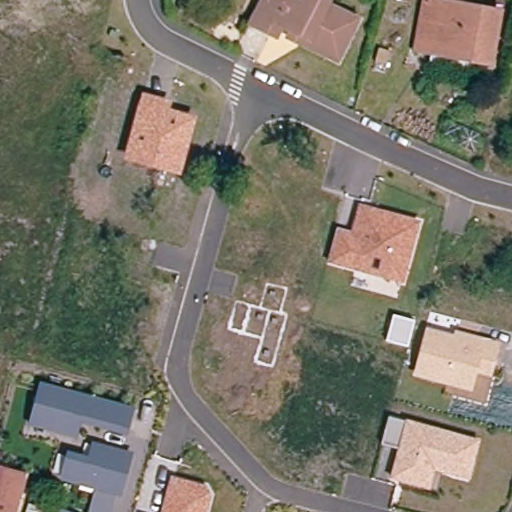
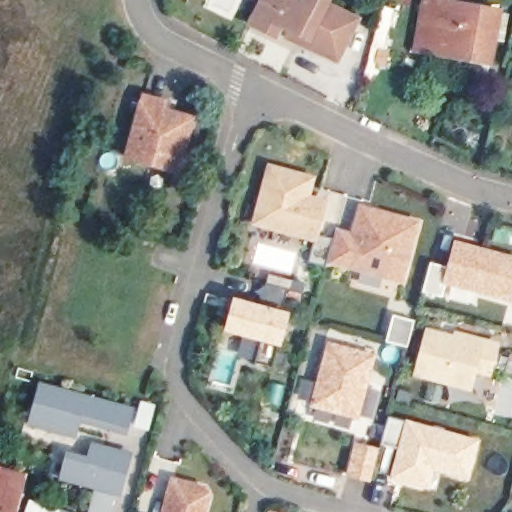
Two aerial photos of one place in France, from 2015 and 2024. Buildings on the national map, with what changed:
unchanged [(302,39),(287,32),(283,41),(257,27),(272,0),(320,0),(330,5),(327,13),(356,27),(335,66),(312,55),(298,47),(302,39)]
unchanged [(413,52),(421,28),(428,0),(430,0),(502,21),(486,74),(466,67),(429,56),(413,52)]
unchanged [(171,99),(168,108),(197,116),(182,174),(124,159),(142,92),(171,99)]
new [(253,224),(268,162),(317,175),(312,195),(328,200),(317,242),(253,224)]
unchanged [(352,232),(359,202),(422,220),(405,283),(327,262),(337,227),(352,232)]
new [(451,268),(458,243),(512,257),(512,298),(449,282),(445,297),(425,292),(432,263),(451,268)]
new [(276,345),(271,362),(258,359),(262,342),(225,332),(234,297),(261,304),(265,285),(287,291),(282,311),(290,312),(281,347),(276,345)]
new [(397,315),(418,321),(411,347),(391,342),(397,315)]
unchanged [(426,327),(453,335),(455,328),(502,341),(494,379),(478,374),(474,392),(414,377),(426,327)]
new [(377,355),(361,420),(310,407),(327,341),(377,355)]
unchanged [(32,407),(38,385),(129,410),(123,432),(76,420),(71,436),(46,428),(27,423),(32,407)]
unchanged [(398,447),(382,443),(388,416),(406,420),(480,440),(470,481),(435,472),(430,491),(390,480),(398,447)]
unchanged [(88,456),(94,442),(132,452),(122,492),(118,495),(113,512),(91,512),(96,485),(59,480),(66,452),(88,456)]
unchanged [(20,472),(10,512),(0,512),(0,474),(2,467),(20,472)]
unchanged [(202,483),(211,493),(207,512),(160,512),(169,475),(202,483)]
unchanged [(59,512),(54,512),(54,511),(59,512)]

